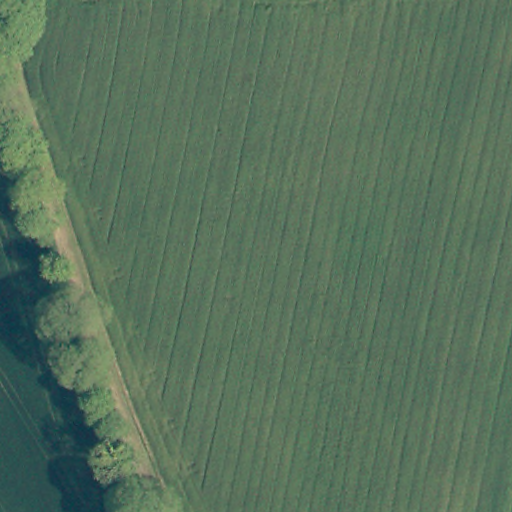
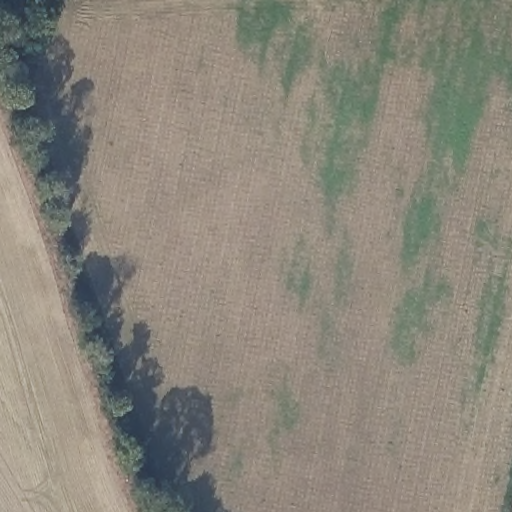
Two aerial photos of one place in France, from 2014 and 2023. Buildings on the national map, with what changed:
[]

